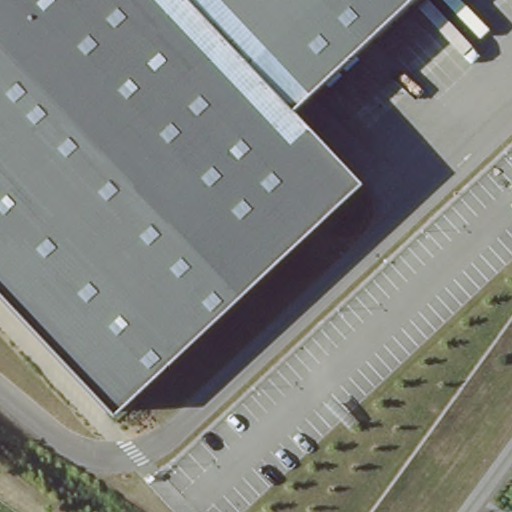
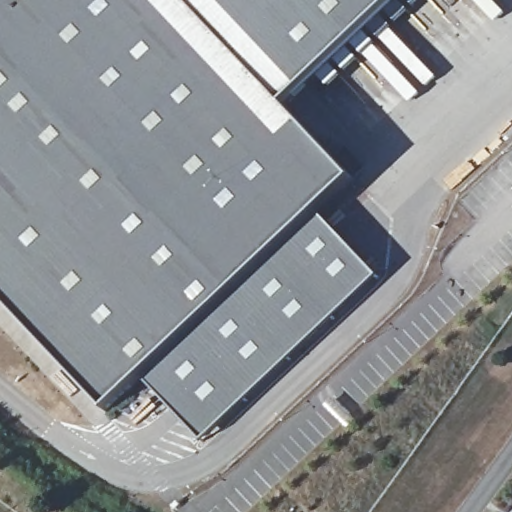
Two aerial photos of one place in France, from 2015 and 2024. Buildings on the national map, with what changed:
unchanged [(285,109),(356,180),(112,408),(0,297),(0,0),(400,0),(285,109)]
new [(318,216),(380,278),(204,442),(143,380),(318,216)]

